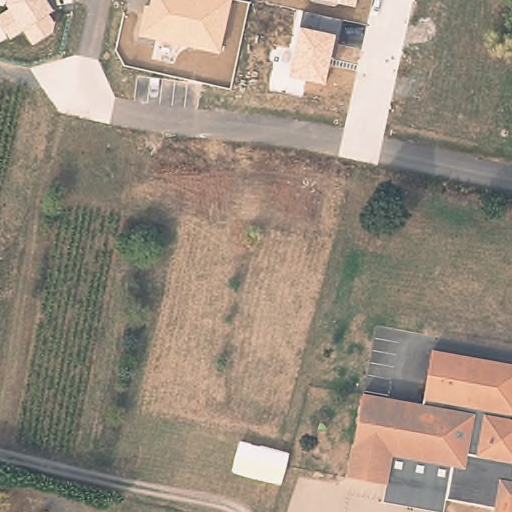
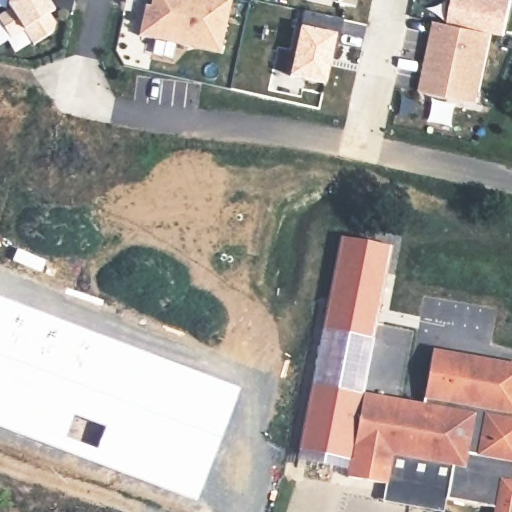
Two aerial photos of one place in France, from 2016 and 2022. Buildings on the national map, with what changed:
unchanged [(55,7),(51,12),(56,21),(55,31),(35,43),(25,30),(11,39),(0,23),(0,13),(10,8),(6,4),(6,0),(50,0),(55,7)]
unchanged [(222,52),(139,36),(145,3),(151,4),(152,0),(225,0),(233,2),(222,52)]
unchanged [(357,4),(350,0),(357,0),(357,4)]
unchanged [(505,34),(493,32),(479,101),(419,91),(433,20),(447,23),(452,0),(512,0),(505,34)]
unchanged [(304,10),(345,19),(337,56),(332,56),(326,83),(290,75),(304,10)]
new [(391,246),(363,391),(347,477),(295,467),(340,236),(391,246)]
new [(203,498),(0,425),(0,299),(239,388),(203,498)]
unchanged [(512,365),(512,512),(492,512),(493,508),(447,500),(444,512),(429,512),(383,503),(386,484),(347,477),(363,391),(424,404),(433,351),(512,365)]

